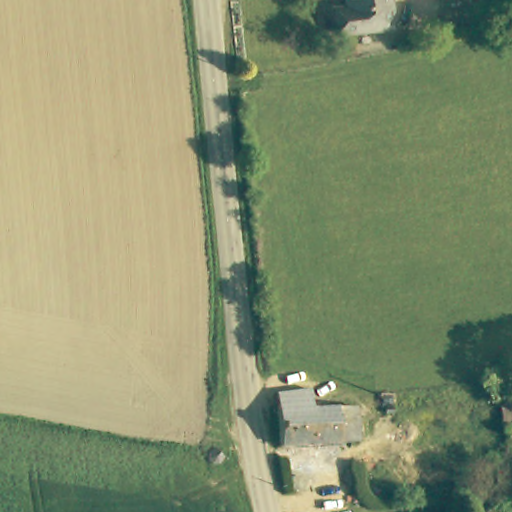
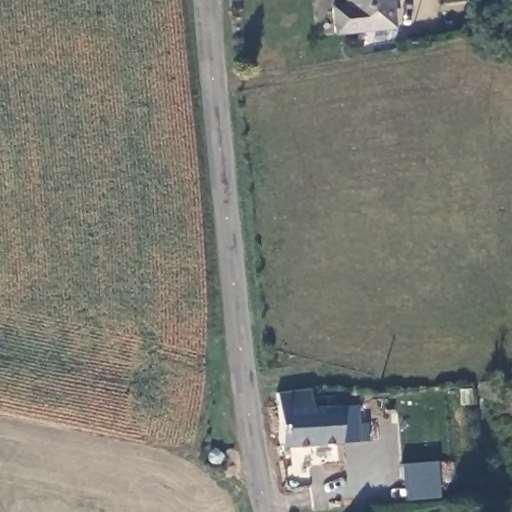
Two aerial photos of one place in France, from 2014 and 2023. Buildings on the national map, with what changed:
unchanged [(384,31),(327,34),(325,8),(339,7),(339,0),(383,0),(384,31)]
unchanged [(288,392),(307,390),(308,409),(327,408),(356,407),(356,441),(276,443),(275,393),(288,392)]
unchanged [(200,447),(206,448),(216,449),(215,466),(197,464),(199,451),(200,447)]
new [(437,460),(440,500),(404,503),(401,465),(437,460)]

